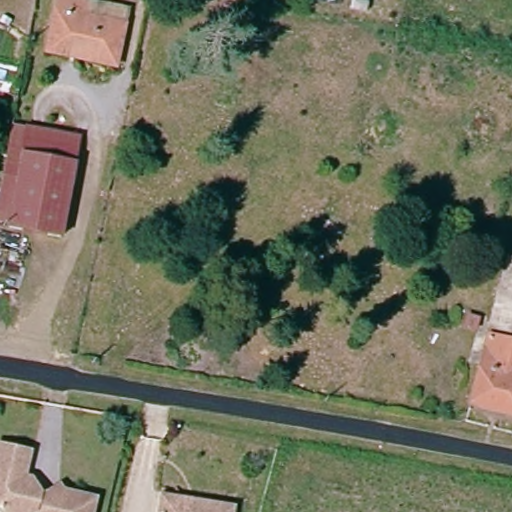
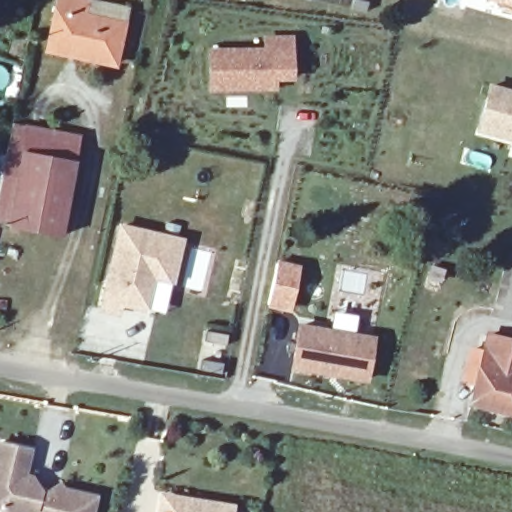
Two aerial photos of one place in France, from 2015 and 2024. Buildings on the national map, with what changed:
unchanged [(57,0),(78,0),(126,11),(113,70),(75,62),(76,52),(47,46),(57,0)]
new [(487,0),(512,0),(512,7),(487,0)]
new [(277,81),(277,90),(209,91),(209,47),(264,46),(264,36),(294,35),(295,80),(277,81)]
new [(477,132),(489,84),(512,89),(512,142),(477,132)]
unchanged [(61,238),(0,226),(0,189),(15,122),(83,137),(61,238)]
new [(156,283),(150,313),(121,306),(120,315),(99,311),(119,223),(184,239),(174,287),(156,283)]
unchanged [(512,260),(512,331),(494,327),(506,259),(512,260)]
new [(278,263),(299,268),(290,310),(269,305),(278,263)]
new [(290,367),(299,322),(377,335),(368,381),(290,367)]
unchanged [(512,338),(512,404),(484,400),(496,335),(512,338)]
unchanged [(30,471),(38,472),(46,487),(46,489),(53,491),(54,488),(66,480),(70,485),(101,491),(97,512),(51,512),(49,510),(50,507),(41,505),(30,512),(27,512),(11,509),(3,497),(0,496),(0,456),(4,438),(36,445),(30,471)]
unchanged [(193,501),(190,512),(165,512),(169,496),(193,501)]
unchanged [(200,502),(202,496),(239,505),(237,512),(190,512),(193,501),(200,502)]

